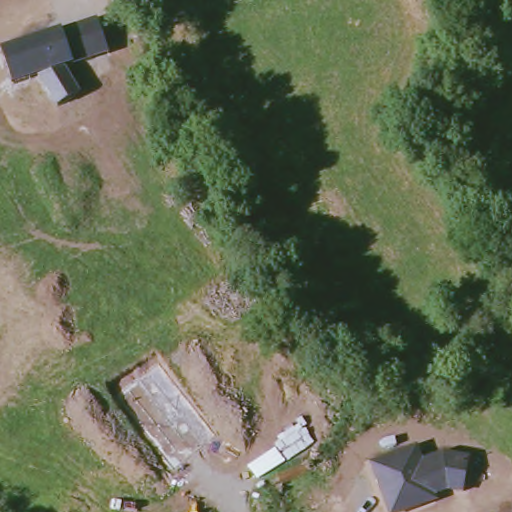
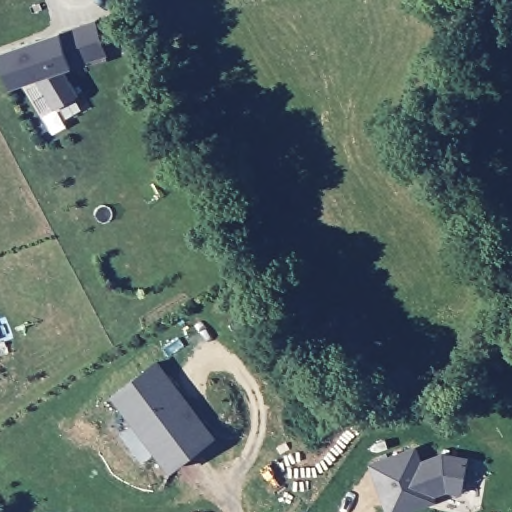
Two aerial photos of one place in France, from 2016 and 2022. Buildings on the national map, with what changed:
unchanged [(2,50),(61,30),(62,32),(96,19),(109,55),(73,65),(64,69),(80,92),(56,107),(35,79),(14,87),(2,50)]
new [(156,365),(214,440),(171,473),(113,398),(156,365)]
unchanged [(416,446),(422,460),(444,452),(470,457),(462,493),(447,491),(435,495),(438,500),(407,512),(388,512),(370,462),(416,446)]

